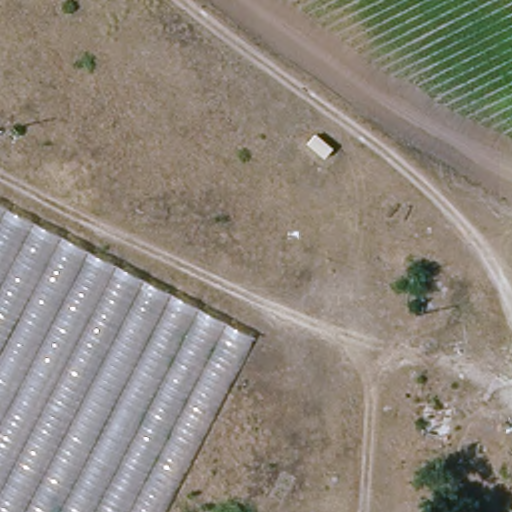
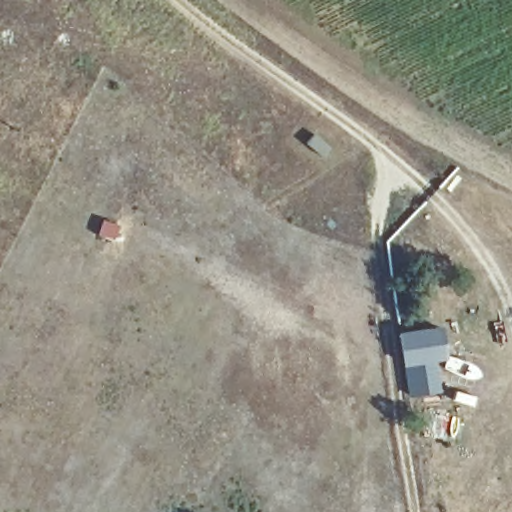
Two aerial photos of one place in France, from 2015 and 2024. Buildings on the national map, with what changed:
demolished [(252,334),(158,512),(0,512),(0,203),(252,334)]
new [(445,325),(448,360),(437,361),(442,393),(408,397),(396,332),(445,325)]
demolished [(462,359),(449,455),(411,449),(426,353),(462,359)]

